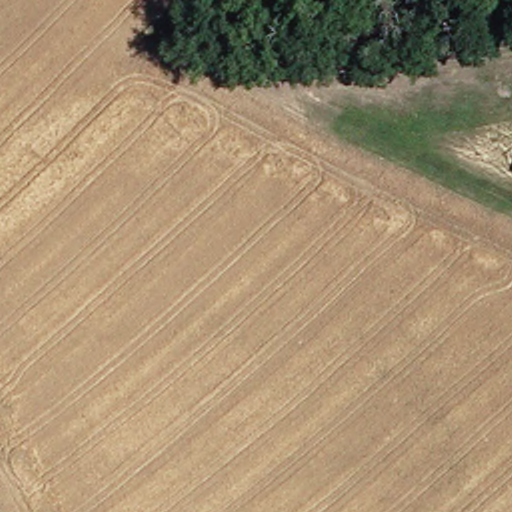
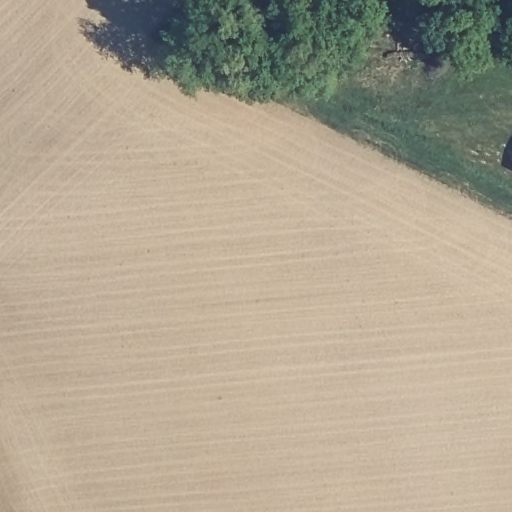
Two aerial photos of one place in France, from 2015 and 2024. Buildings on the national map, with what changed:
[]

